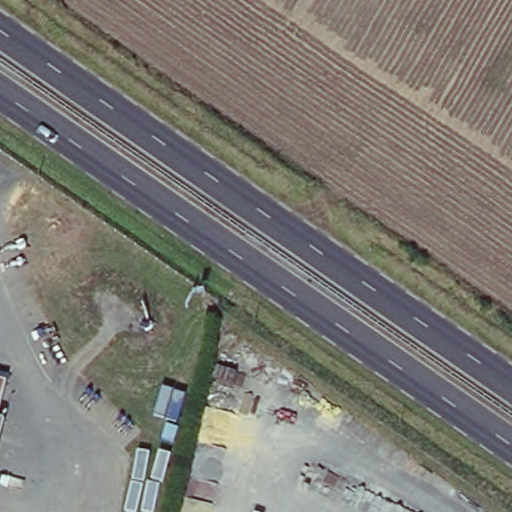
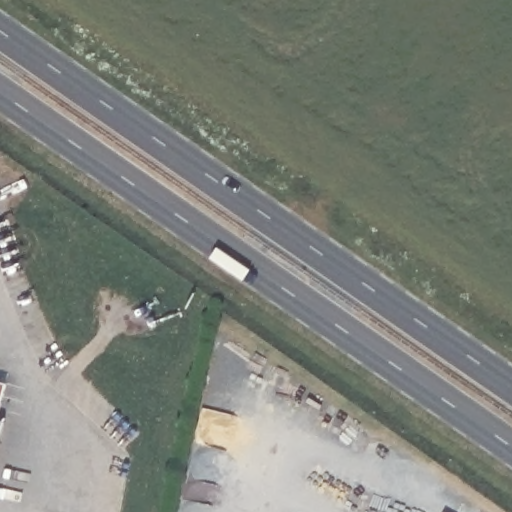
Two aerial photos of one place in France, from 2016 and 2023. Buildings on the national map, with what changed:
unchanged [(7,379),(0,407),(0,377),(7,379)]
unchanged [(5,417),(0,436),(0,416),(5,417)]

